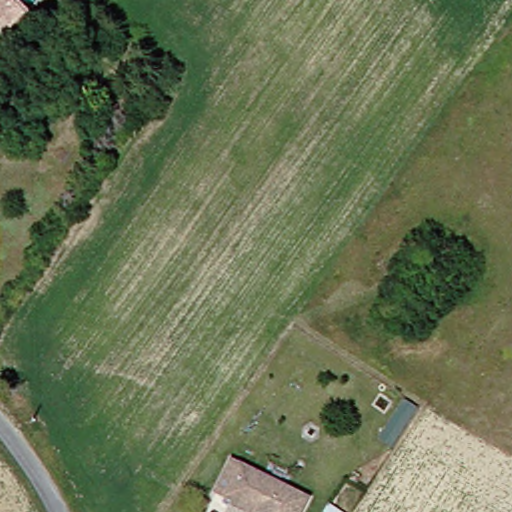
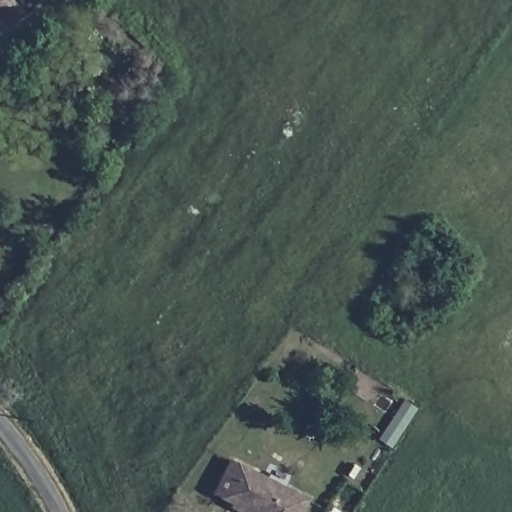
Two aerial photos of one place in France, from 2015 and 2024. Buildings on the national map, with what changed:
unchanged [(0,39),(0,0),(8,0),(12,3),(15,7),(24,17),(1,40),(0,39)]
unchanged [(30,105),(27,104),(0,90),(0,67),(39,87),(32,99),(30,105)]
unchanged [(303,508),(301,512),(252,512),(223,492),(243,465),(303,508)]
unchanged [(338,480),(347,467),(362,478),(354,491),(338,480)]

